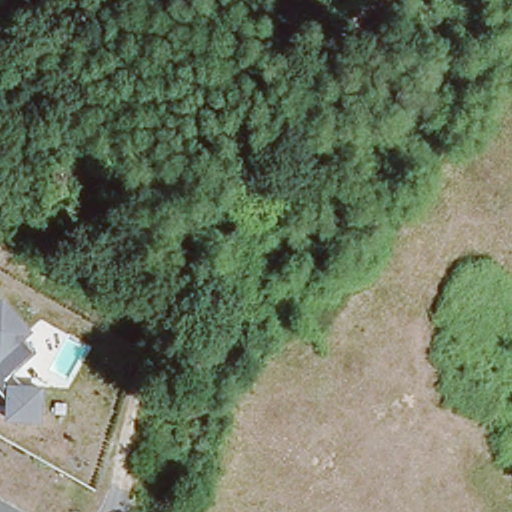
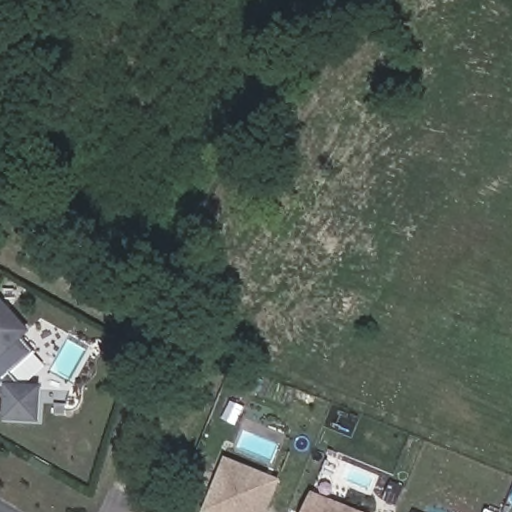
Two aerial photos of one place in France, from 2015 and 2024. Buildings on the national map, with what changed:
unchanged [(34,333),(25,341),(36,354),(14,375),(22,384),(46,385),(44,424),(7,423),(7,399),(0,392),(0,301),(4,298),(34,333)]
new [(282,480),(267,512),(206,512),(225,458),(282,480)]
new [(303,512),(312,492),(364,512),(303,512)]

